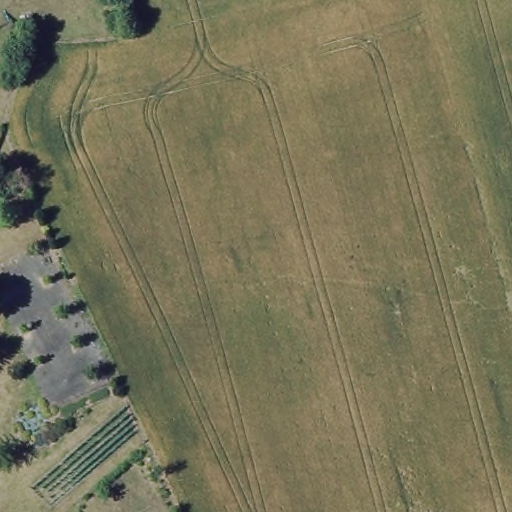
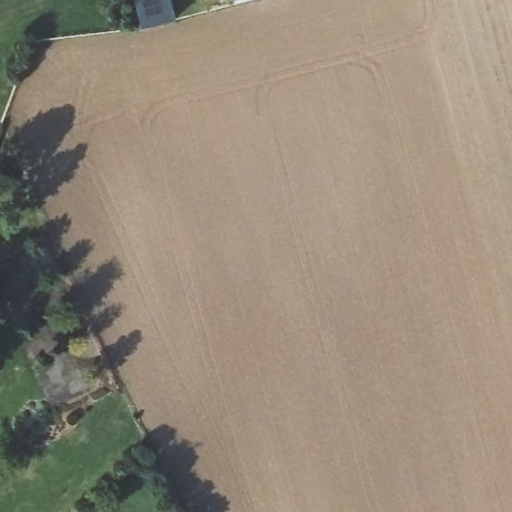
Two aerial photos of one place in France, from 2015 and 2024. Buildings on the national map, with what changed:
new [(174,20),(137,29),(130,0),(169,0),(174,20)]

